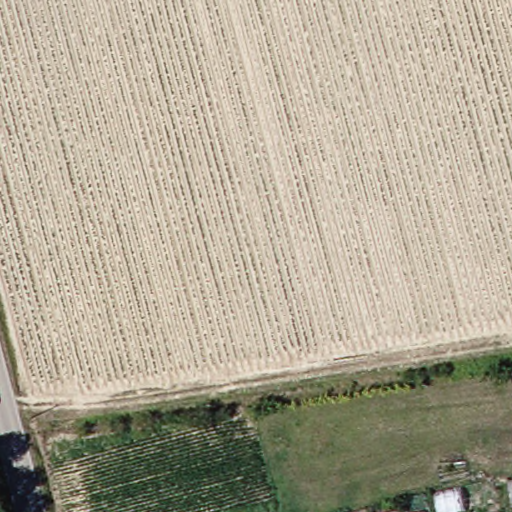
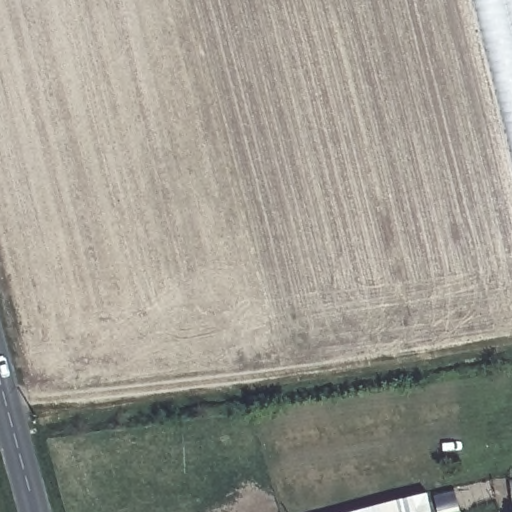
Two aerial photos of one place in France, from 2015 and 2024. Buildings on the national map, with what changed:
new [(512,0),(512,157),(473,0),(512,0)]
unchanged [(506,508),(506,512),(492,512),(506,508)]

